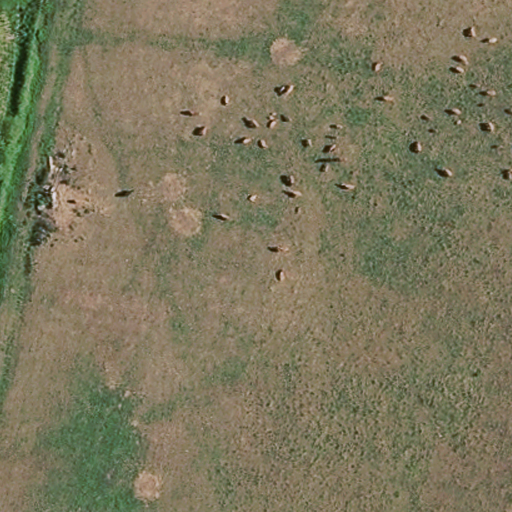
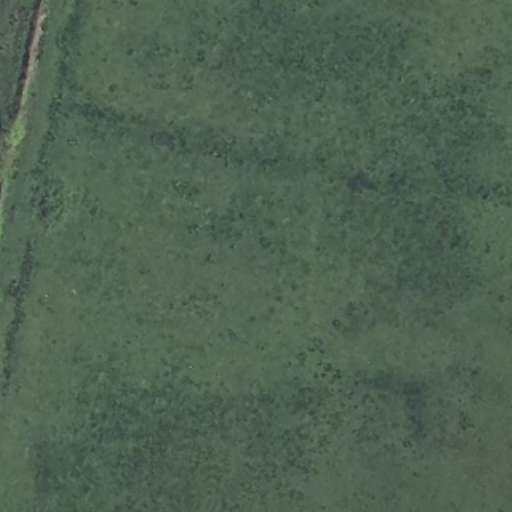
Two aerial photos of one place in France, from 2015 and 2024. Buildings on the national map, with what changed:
[]

